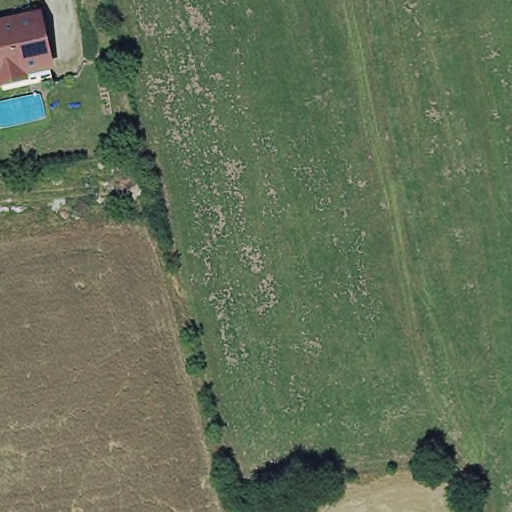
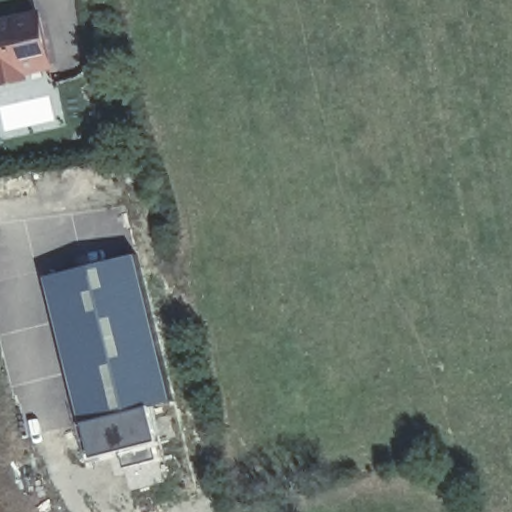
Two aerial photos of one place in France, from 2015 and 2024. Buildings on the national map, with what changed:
unchanged [(51,70),(0,83),(0,20),(40,10),(51,70)]
new [(142,256),(178,398),(86,421),(52,276),(142,256)]

